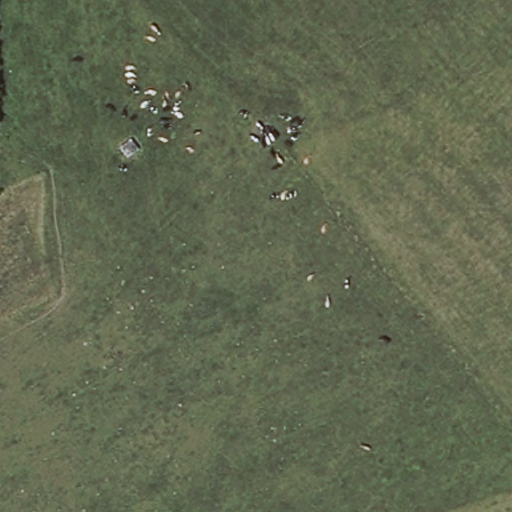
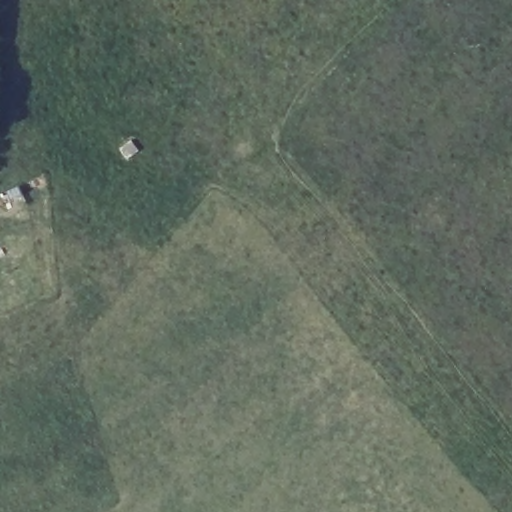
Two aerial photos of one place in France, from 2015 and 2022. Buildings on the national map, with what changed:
[]

